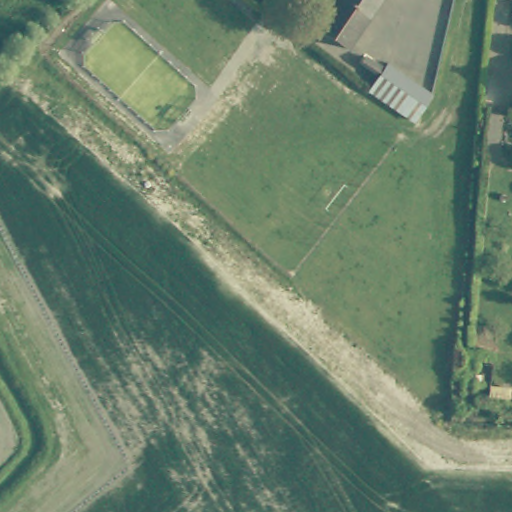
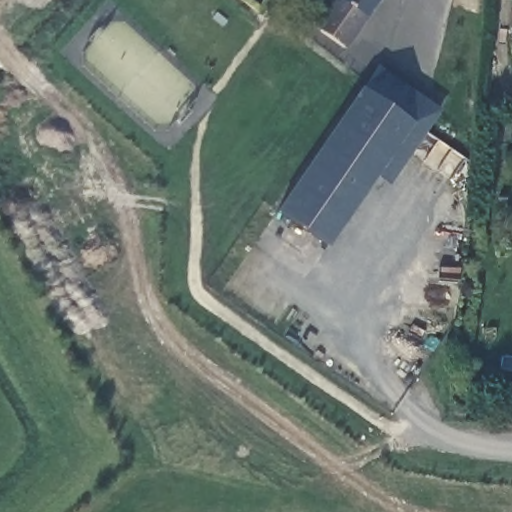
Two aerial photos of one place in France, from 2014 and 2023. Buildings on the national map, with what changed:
unchanged [(305,49),(336,0),(384,0),(338,70),(305,49)]
demolished [(376,81),(358,68),(364,58),(383,71),(376,81)]
new [(441,109),(390,185),(377,176),(328,247),(278,210),(363,87),(380,67),(441,109)]
demolished [(398,120),(417,89),(429,97),(411,128),(398,120)]

